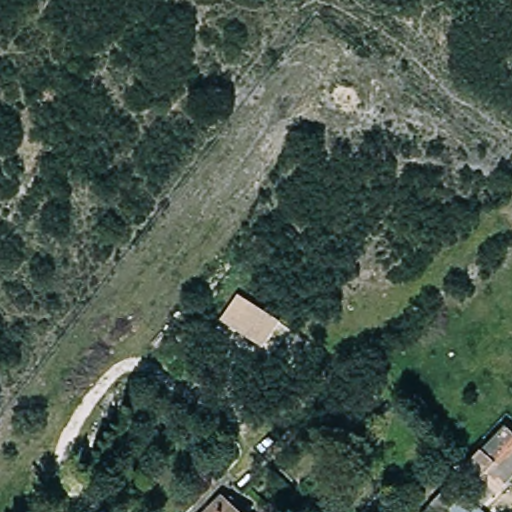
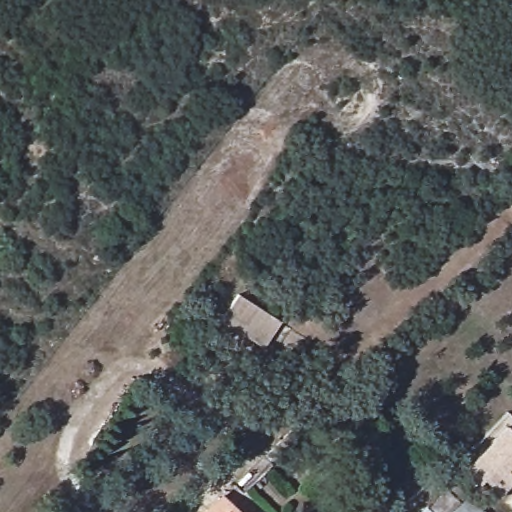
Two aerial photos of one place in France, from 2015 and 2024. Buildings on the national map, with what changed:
unchanged [(280,320),(264,348),(222,319),(238,294),(280,320)]
unchanged [(481,496),(475,491),(465,481),(510,435),(512,437),(512,477),(505,472),(481,496)]
unchanged [(470,502),(460,512),(443,512),(435,504),(453,485),(466,498),(470,502)]
unchanged [(221,498),(225,502),(235,512),(208,512),(221,498)]

